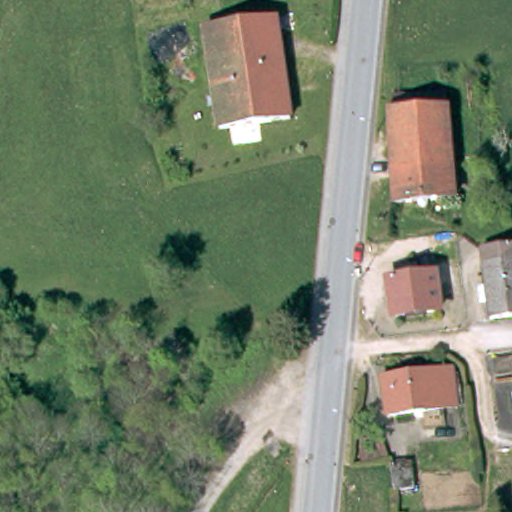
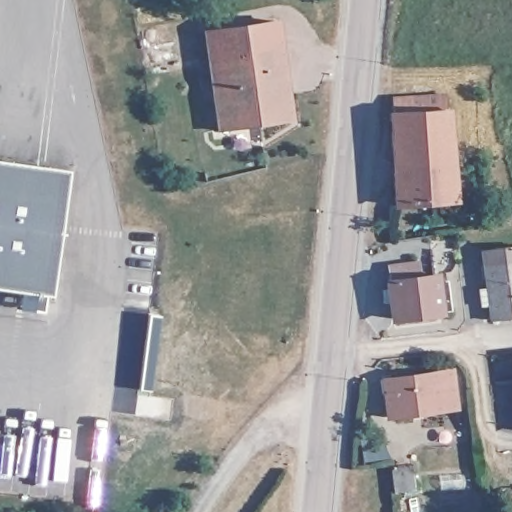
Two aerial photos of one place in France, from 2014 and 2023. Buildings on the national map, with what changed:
unchanged [(287,119),(214,125),(203,26),(221,25),(277,17),(287,119)]
unchanged [(390,208),(385,123),(388,123),(387,109),(445,103),(446,116),(450,201),(390,208)]
new [(52,295),(0,288),(0,160),(70,170),(52,295)]
unchanged [(512,244),(512,318),(488,320),(477,250),(512,244)]
unchanged [(434,273),(440,312),(395,318),(389,280),(434,273)]
unchanged [(490,370),(488,353),(512,350),(512,368),(490,370)]
unchanged [(449,366),(454,403),(381,412),(376,375),(449,366)]
unchanged [(420,462),(422,487),(404,488),(402,463),(420,462)]

